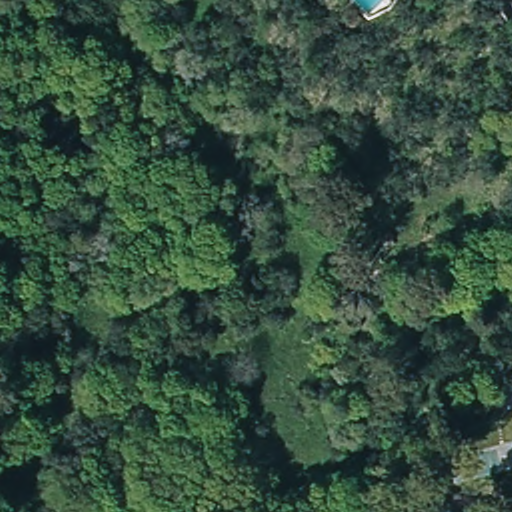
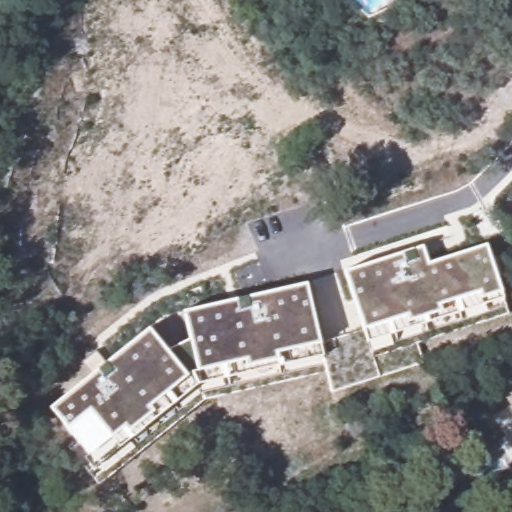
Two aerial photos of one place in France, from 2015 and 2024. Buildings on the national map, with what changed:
new [(415,225),(417,229),(439,220),(450,247),(427,255),(426,253),(390,267),(381,240),(415,225)]
new [(504,295),(412,325),(366,339),(363,327),(345,270),(423,245),(429,262),(487,243),(504,295)]
new [(320,342),(322,354),(198,383),(95,462),(50,407),(148,326),(167,349),(190,338),(183,311),(307,282),(320,342)]
new [(322,354),(320,342),(363,327),(366,339),(412,325),(424,361),(333,392),(322,354)]

